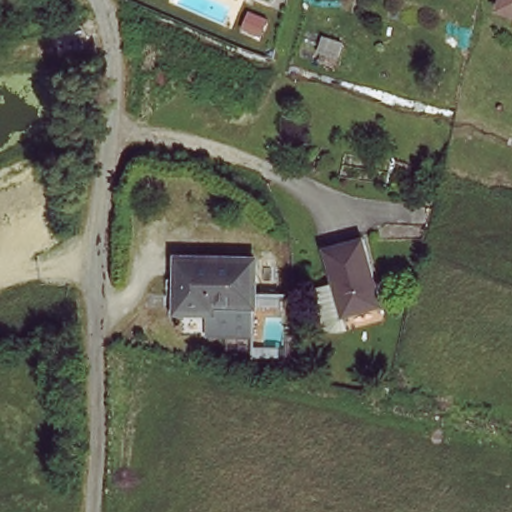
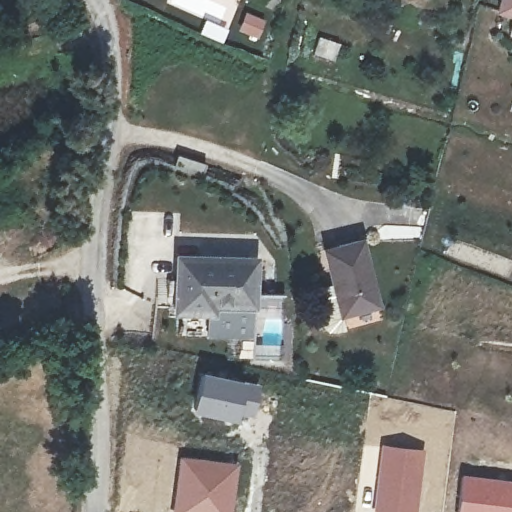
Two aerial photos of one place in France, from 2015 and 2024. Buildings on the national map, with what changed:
unchanged [(497,0),(512,0),(512,13),(495,6),(497,0)]
demolished [(196,202),(168,192),(177,163),(205,173),(196,202)]
unchanged [(349,322),(330,258),(365,247),(383,312),(349,322)]
unchanged [(215,323),(214,314),(173,314),(174,257),(254,255),(254,321),(215,323)]
new [(200,370),(265,384),(256,420),(241,417),(240,421),(191,411),(200,370)]
new [(379,443),(424,449),(417,512),(372,512),(379,443)]
new [(178,455),(241,462),(234,512),(172,512),(178,455)]
new [(460,473),(512,479),(512,512),(456,512),(460,473)]

